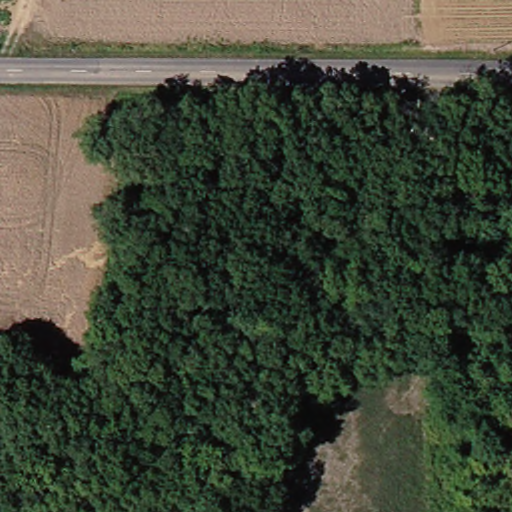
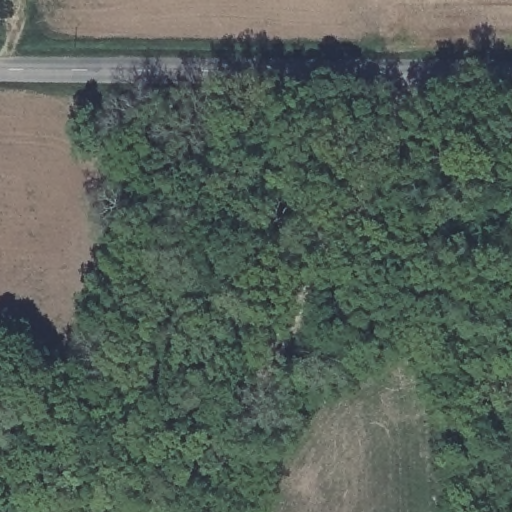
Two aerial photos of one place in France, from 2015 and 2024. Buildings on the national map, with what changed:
[]

